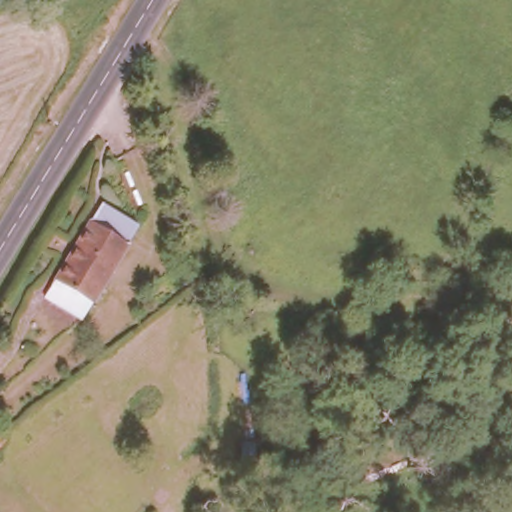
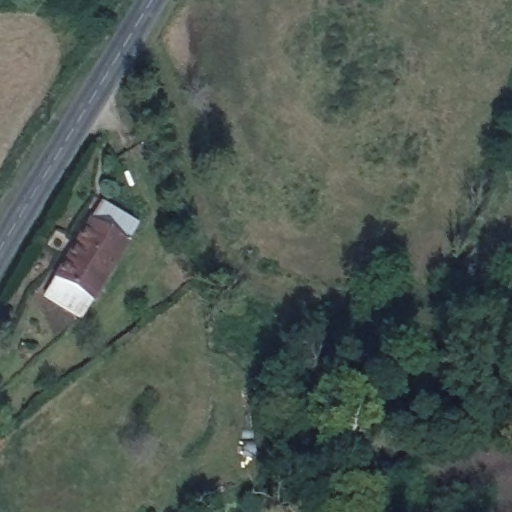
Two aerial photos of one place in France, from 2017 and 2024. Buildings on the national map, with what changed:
unchanged [(80,325),(37,298),(47,277),(83,220),(97,200),(135,225),(80,325)]
unchanged [(398,333),(400,349),(376,350),(375,334),(398,333)]

